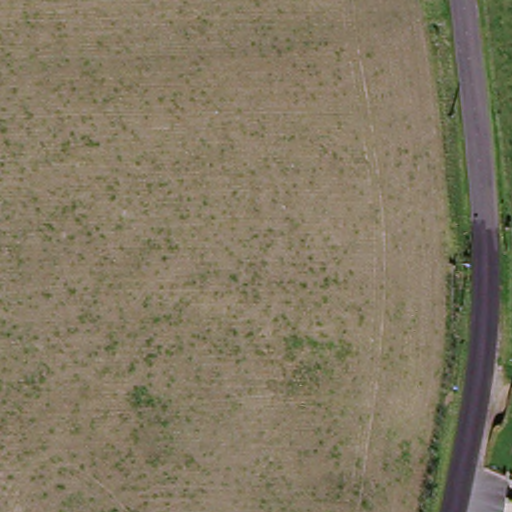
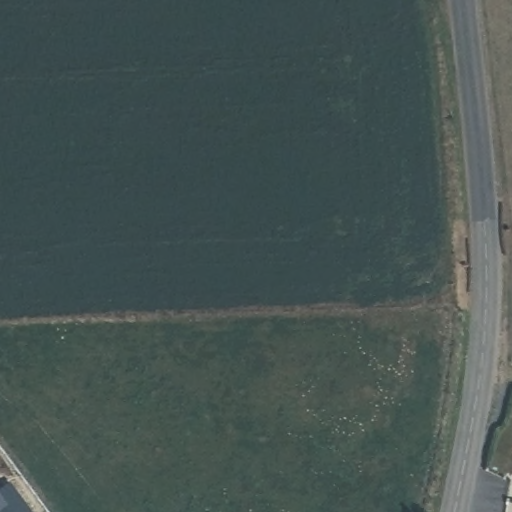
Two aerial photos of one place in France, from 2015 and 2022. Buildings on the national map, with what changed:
new [(29,512),(0,512),(0,493),(10,486),(29,512)]

